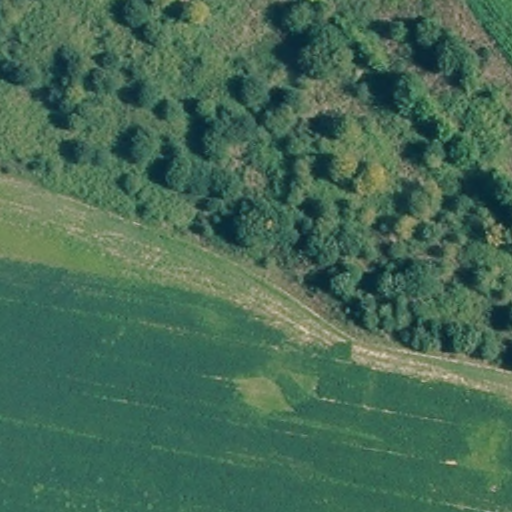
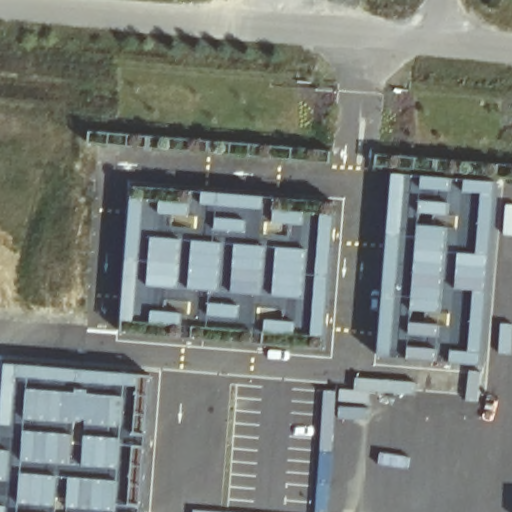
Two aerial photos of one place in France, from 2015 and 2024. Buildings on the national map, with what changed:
new [(386,287),(394,174),(423,176),(424,220),(423,226),(420,226),(414,281),(415,314),(414,321),(409,361),(382,358),(386,287)]
new [(455,180),(453,197),(450,197),(451,218),(437,218),(437,221),(424,220),(423,176),(455,180)]
new [(467,180),(498,182),(493,255),(478,254),(482,197),(465,195),(467,180)]
new [(134,199),(151,202),(150,212),(152,212),(152,233),(150,262),(140,324),(124,323),(134,199)]
new [(189,215),(161,216),(160,234),(156,234),(153,217),(152,213),(160,213),(161,202),(190,208),(189,215)]
new [(296,311),(293,310),(294,301),(275,300),(260,299),(223,295),(222,295),(148,289),(150,262),(152,233),(160,234),(174,236),(189,238),(195,238),(216,240),(218,215),(253,220),(252,243),(312,249),(309,301),(300,339),(266,336),(268,319),(295,319),(296,311)]
new [(323,215),(339,216),(336,266),(327,338),(312,337),(323,215)]
new [(420,226),(423,226),(424,220),(437,221),(436,223),(453,227),(446,316),(415,314),(414,281),(420,226)]
new [(461,252),(478,254),(493,255),(490,294),(476,293),(458,291),(461,252)]
new [(454,349),(471,351),(476,293),(490,294),(479,402),(465,400),(469,370),(477,371),(477,367),(452,364),(454,349)]
new [(212,300),(222,300),(223,295),(260,299),(258,327),(210,321),(212,300)]
new [(414,321),(446,324),(441,364),(409,361),(414,321)]
new [(4,397),(6,363),(155,376),(149,448),(125,447),(119,512),(0,512),(0,428),(4,397)]
new [(357,376),(416,381),(415,394),(355,390),(357,376)]
new [(149,448),(149,473),(145,494),(143,512),(119,512),(125,447),(149,448)]

